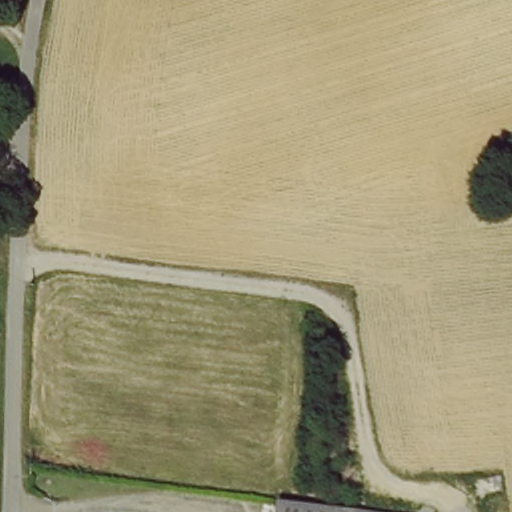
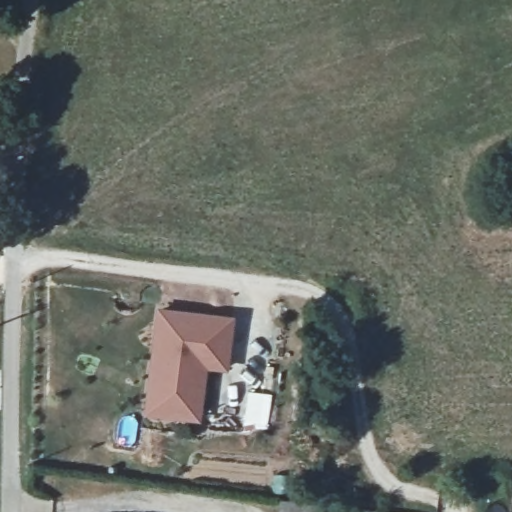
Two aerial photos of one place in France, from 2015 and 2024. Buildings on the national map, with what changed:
new [(234,318),(228,373),(206,371),(200,425),(143,418),(156,309),(234,318)]
unchanged [(274,503),(345,512),(273,512),(274,503)]

